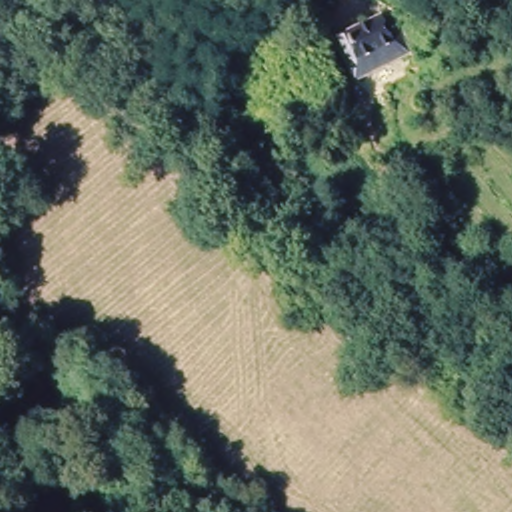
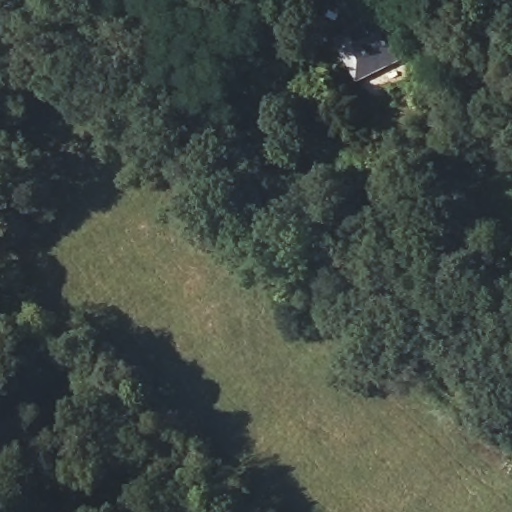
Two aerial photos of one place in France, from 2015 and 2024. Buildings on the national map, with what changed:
unchanged [(258,0),(283,0),(270,15),(258,0)]
unchanged [(405,56),(366,76),(353,84),(333,41),(384,8),(395,35),(405,56)]

